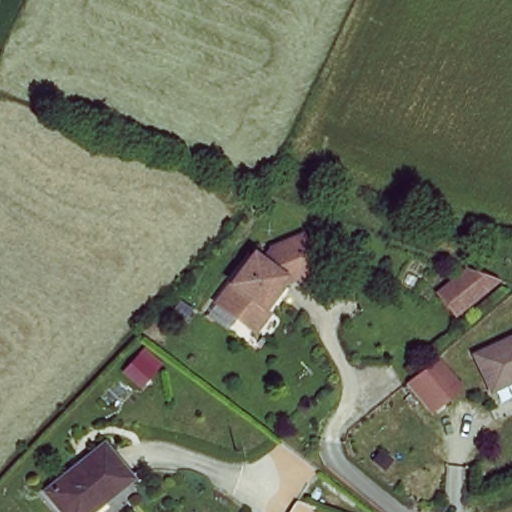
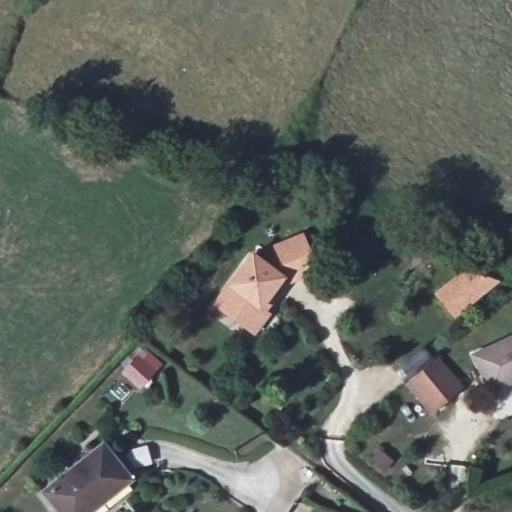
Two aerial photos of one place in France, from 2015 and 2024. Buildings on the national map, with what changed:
unchanged [(256,329),(245,319),(220,297),(260,251),(269,258),(278,247),(310,234),(323,269),(294,281),(292,279),(280,293),(276,290),(265,304),(272,311),(256,329)]
unchanged [(437,292),(461,271),(467,267),(484,273),(497,277),(480,292),(455,312),(437,292)]
unchanged [(475,353),(512,335),(512,379),(495,388),(475,353)]
unchanged [(429,404),(412,381),(448,356),(470,381),(429,404)]
unchanged [(129,481),(86,512),(64,512),(45,486),(103,445),(129,481)]

